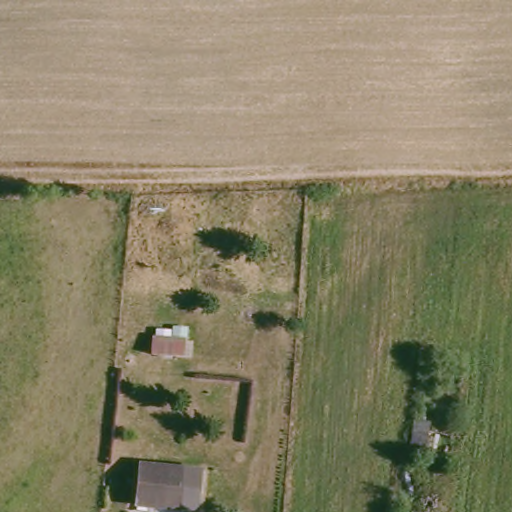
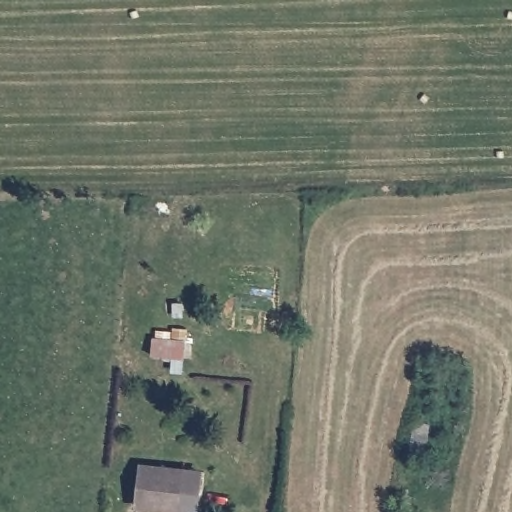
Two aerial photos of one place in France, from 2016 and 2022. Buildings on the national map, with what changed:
unchanged [(192,487),(175,486),(173,505),(132,500),(135,462),(192,465),(192,487)]

